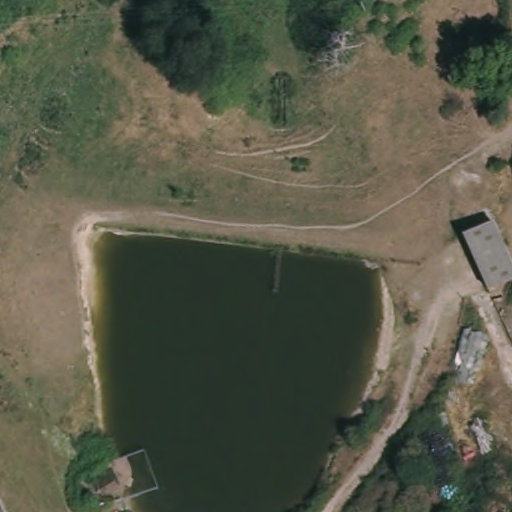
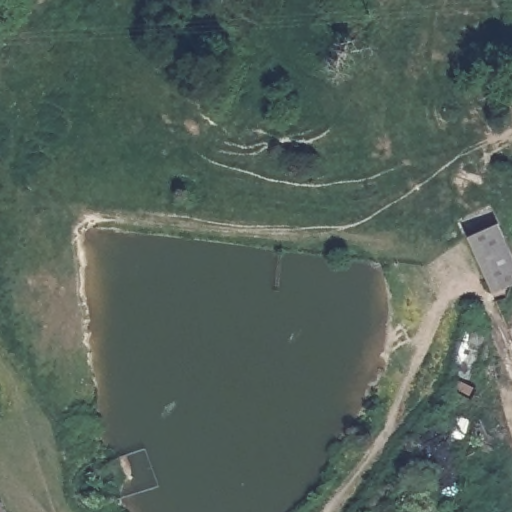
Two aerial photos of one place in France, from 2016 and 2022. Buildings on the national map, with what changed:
unchanged [(512,283),(490,291),(465,236),(497,220),(512,255),(512,283)]

